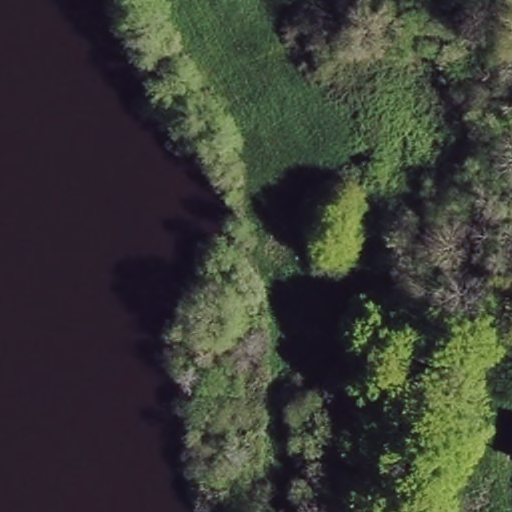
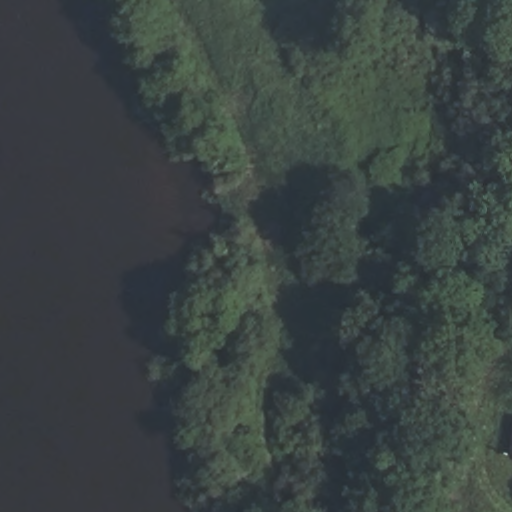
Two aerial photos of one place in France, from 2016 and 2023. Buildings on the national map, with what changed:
unchanged [(512,461),(511,461),(510,425),(512,425),(512,461)]

